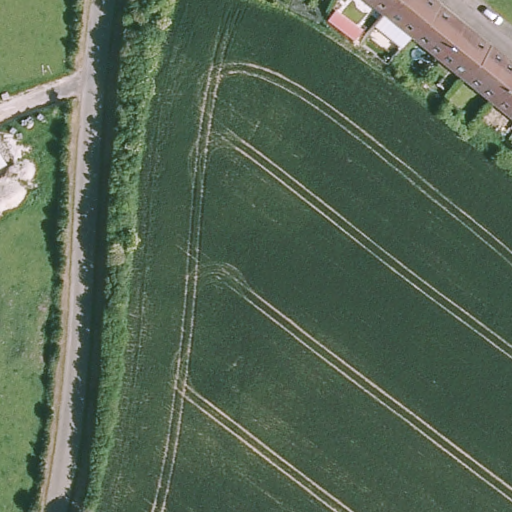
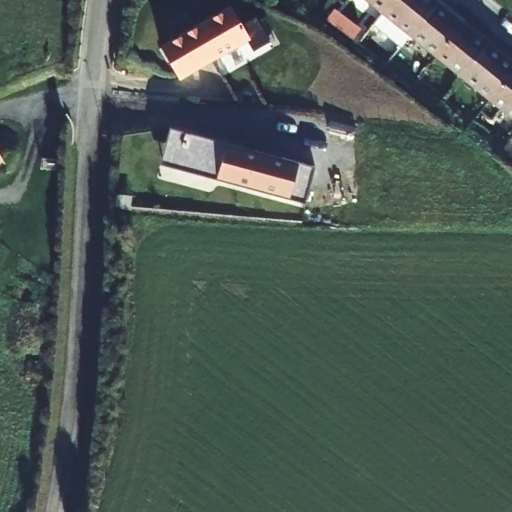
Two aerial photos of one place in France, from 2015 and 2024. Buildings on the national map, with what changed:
unchanged [(389,12),(374,0),(399,0),(389,12)]
unchanged [(417,36),(389,12),(399,0),(438,0),(441,2),(444,5),(443,7),(417,36)]
new [(159,45),(171,38),(175,45),(183,41),(179,34),(187,29),(188,32),(196,28),(194,25),(230,4),(251,39),(180,80),(159,45)]
unchanged [(441,57),(417,36),(443,7),(466,27),(441,57)]
new [(361,33),(353,43),(326,21),(334,11),(361,33)]
new [(258,21),(266,16),(274,28),(266,33),(271,39),(253,50),(248,41),(251,39),(243,25),(254,17),(258,21)]
unchanged [(478,38),(488,46),(464,77),(441,57),(466,27),(478,38)]
unchanged [(493,101),(464,77),(488,46),(489,44),(512,64),(512,78),(493,101)]
unchanged [(493,101),(512,78),(512,118),(493,101)]
new [(309,171),(303,206),(159,169),(167,132),(309,171)]

